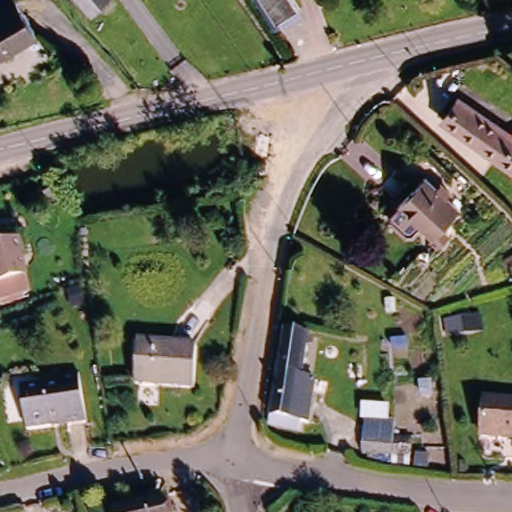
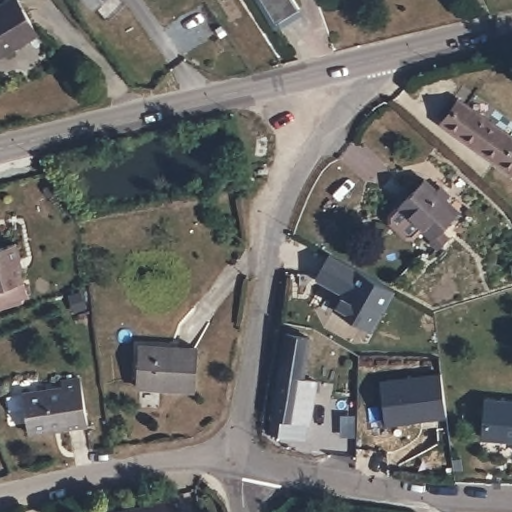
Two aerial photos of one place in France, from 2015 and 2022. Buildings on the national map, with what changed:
unchanged [(19,0),(35,29),(0,49),(0,1),(3,0),(19,0)]
unchanged [(88,0),(98,0),(92,5),(88,0)]
unchanged [(272,24),(257,0),(288,0),(294,9),(272,24)]
unchanged [(459,97),(512,135),(512,167),(442,119),(459,97)]
unchanged [(435,245),(427,238),(430,235),(395,203),(420,176),(432,186),(437,180),(447,190),(442,195),(455,206),(438,225),(446,232),(435,245)]
unchanged [(20,262),(18,267),(24,283),(0,291),(0,252),(16,247),(20,262)]
new [(331,253),(395,290),(372,331),(332,309),(335,304),(342,293),(343,292),(317,279),(331,253)]
unchanged [(283,330),(305,333),(299,372),(314,374),(306,417),(298,416),(267,410),(283,330)]
unchanged [(192,350),(190,390),(132,387),(135,346),(192,350)]
new [(386,424),(380,380),(440,372),(446,418),(386,424)]
unchanged [(25,439),(19,400),(59,392),(59,388),(58,385),(77,381),(77,384),(84,429),(25,439)]
unchanged [(481,401),(512,403),(512,441),(478,438),(481,401)]
demolished [(396,448),(365,445),(366,429),(397,432),(396,448)]
unchanged [(115,508),(164,497),(168,512),(116,512),(115,508)]

